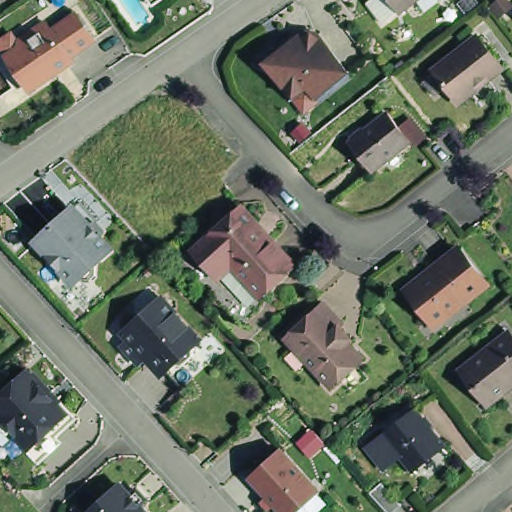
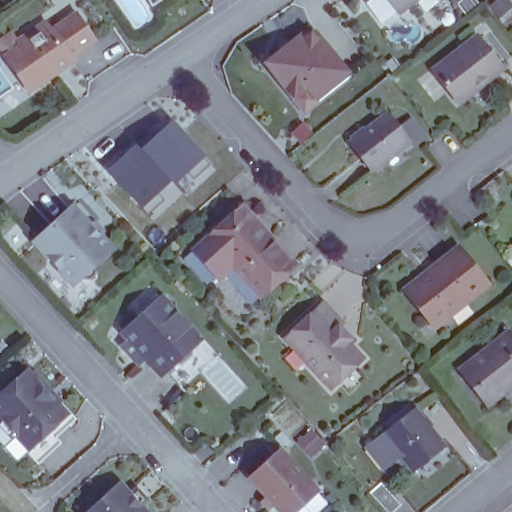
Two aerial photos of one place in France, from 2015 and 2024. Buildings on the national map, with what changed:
unchanged [(147,0),(170,0),(155,11),(147,0)]
unchanged [(372,6),(372,1),(373,0),(419,0),(401,13),(400,12),(385,24),(372,6)]
unchanged [(60,71),(33,90),(10,56),(25,46),(22,41),(49,22),(55,31),(80,14),(97,39),(72,56),(73,58),(75,60),(60,71)]
unchanged [(313,36),(317,39),(350,78),(320,102),(310,93),(295,104),(272,76),(272,68),(291,53),(294,47),(297,44),(303,43),(310,37),(313,36)]
unchanged [(482,38),(504,67),(460,101),(438,73),(482,38)]
unchanged [(391,109),(413,137),(375,167),(352,140),(391,109)]
new [(209,156),(177,184),(173,181),(143,209),(106,171),(137,145),(142,149),(175,122),(209,156)]
unchanged [(236,207),(254,226),(252,229),(263,241),(265,240),(292,267),(290,272),(260,296),(232,263),(215,278),(190,250),(236,207)]
unchanged [(65,276),(34,241),(71,208),(88,227),(93,223),(102,231),(97,236),(108,249),(92,264),(94,274),(88,280),(81,280),(77,276),(72,283),(65,276)]
unchanged [(463,248),(490,283),(435,326),(408,291),(463,248)]
unchanged [(185,383),(170,366),(153,348),(150,352),(142,358),(137,353),(126,341),(133,334),(127,326),(164,293),(202,335),(197,342),(212,358),(185,383)]
unchanged [(322,299),(342,319),(338,323),(348,333),(347,337),(358,354),(329,381),(285,333),(322,299)]
unchanged [(512,335),(512,388),(495,401),(485,390),(483,391),(479,385),(482,382),(471,367),(512,335)]
unchanged [(50,400),(68,421),(35,453),(21,437),(18,439),(2,421),(5,419),(0,414),(0,403),(30,375),(51,398),(50,400)]
unchanged [(368,448),(385,435),(415,410),(441,442),(409,466),(398,453),(383,465),(368,448)]
unchanged [(298,512),(280,512),(253,482),(282,455),(317,493),(298,512)]
unchanged [(112,474),(122,485),(128,480),(137,489),(132,495),(148,512),(83,512),(77,506),(112,474)]

